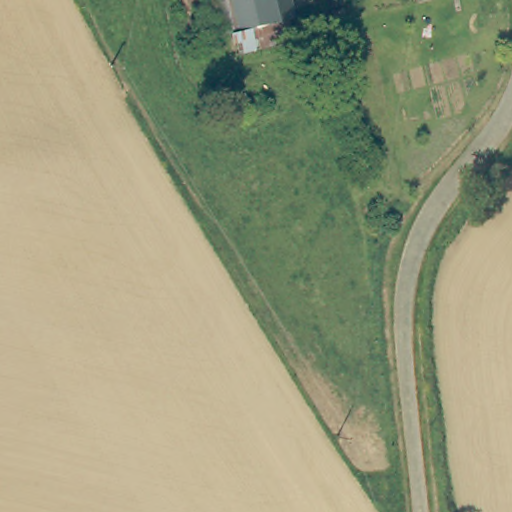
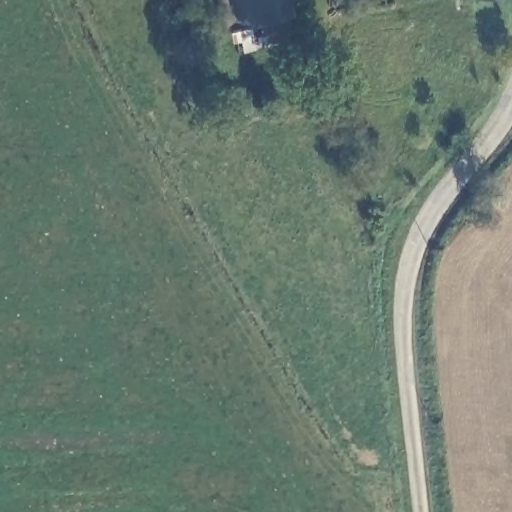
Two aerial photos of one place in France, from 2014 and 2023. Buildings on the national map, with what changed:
unchanged [(232,35),(223,0),(274,0),(280,22),(232,35)]

